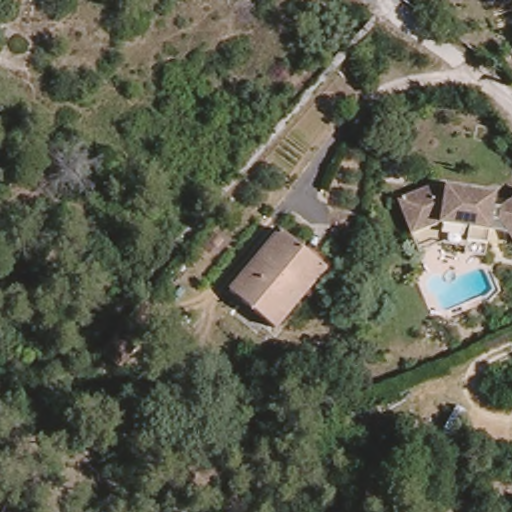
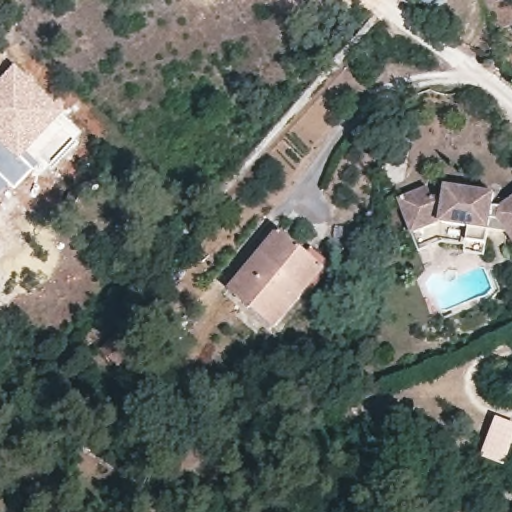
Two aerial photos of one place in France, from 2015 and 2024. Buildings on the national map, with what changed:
new [(15,63),(50,97),(65,115),(25,159),(36,170),(14,190),(7,184),(0,191),(0,79),(15,63)]
unchanged [(464,236),(463,225),(436,220),(410,227),(398,195),(427,184),(431,192),(441,193),(445,183),(494,194),(492,201),(502,203),(512,196),(512,237),(506,229),(490,226),(486,241),(483,253),(465,249),(464,236)]
unchanged [(326,266),(307,290),(277,326),(231,288),(281,229),(287,234),(295,240),(321,262),(326,266)]
unchanged [(137,341),(115,365),(101,351),(122,327),(137,341)]
new [(512,450),(505,466),(480,456),(496,416),(512,422),(512,450)]

